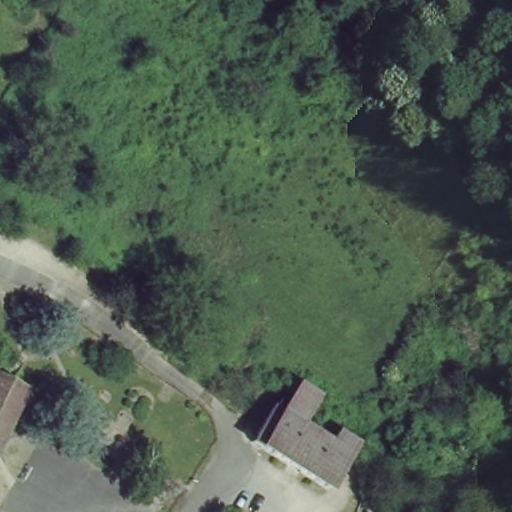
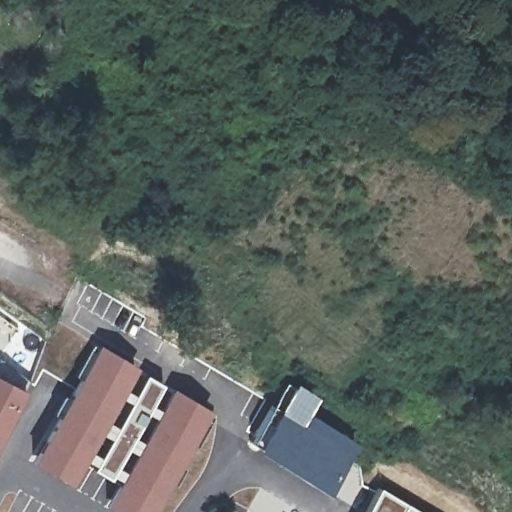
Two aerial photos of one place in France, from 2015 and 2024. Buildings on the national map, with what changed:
new [(91,364),(147,396),(157,380),(162,384),(153,403),(199,429),(152,505),(46,443),(91,364)]
unchanged [(7,437),(0,433),(0,383),(5,386),(5,391),(25,403),(7,437)]
unchanged [(329,502),(250,455),(271,416),(282,420),(295,394),(316,409),(303,432),(332,450),(345,431),(362,444),(329,502)]
unchanged [(2,446),(0,448),(0,433),(7,437),(2,446)]

